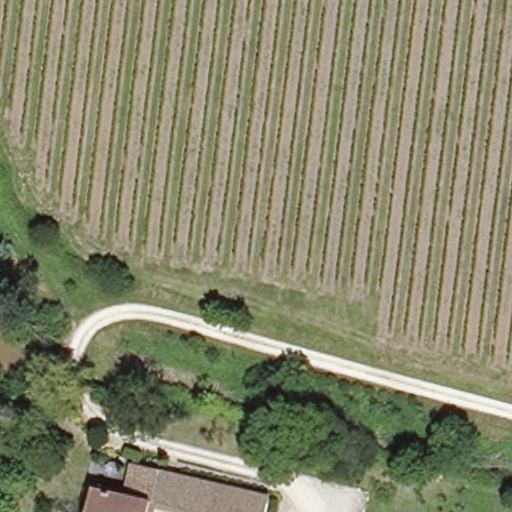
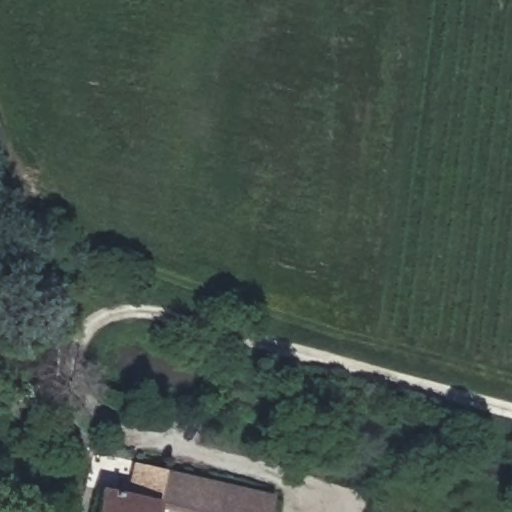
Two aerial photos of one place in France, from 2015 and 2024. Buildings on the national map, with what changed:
unchanged [(126,463),(158,470),(152,501),(149,512),(85,512),(91,483),(121,488),(126,463)]
unchanged [(261,512),(200,512),(152,501),(158,470),(265,496),(261,512)]

